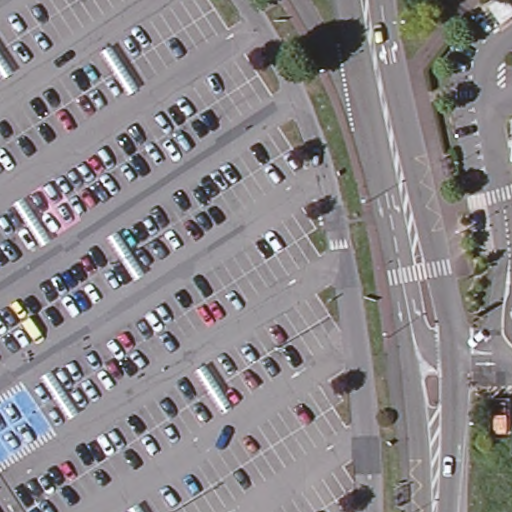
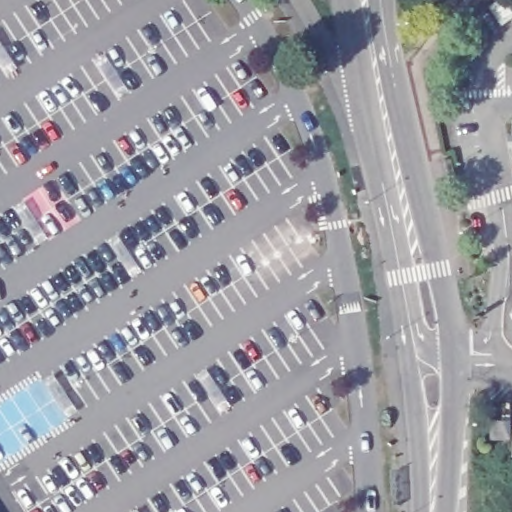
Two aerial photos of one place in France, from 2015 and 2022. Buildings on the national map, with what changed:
unchanged [(512,12),(512,14),(497,25),(485,8),(497,0),(504,0),(512,12)]
unchanged [(512,454),(507,454),(509,428),(512,428),(512,454)]

